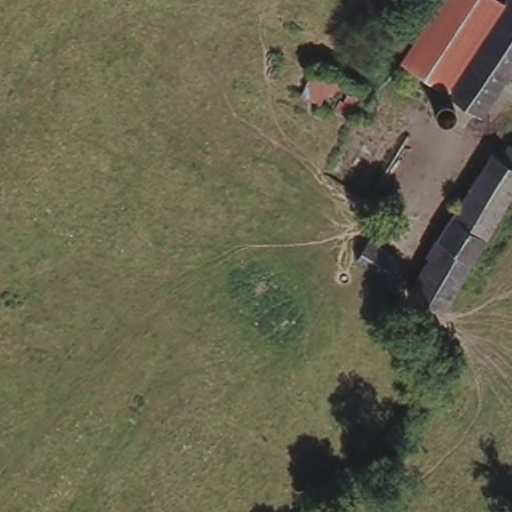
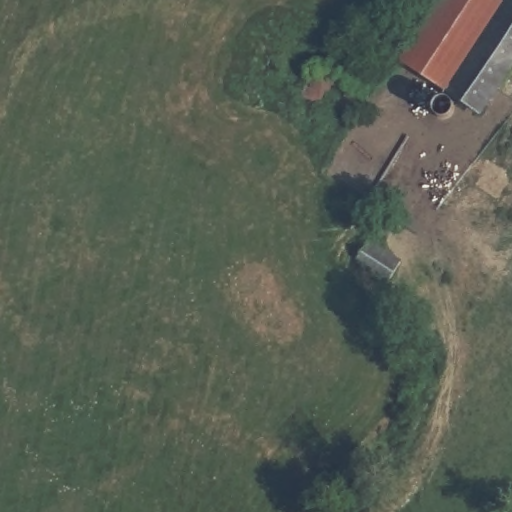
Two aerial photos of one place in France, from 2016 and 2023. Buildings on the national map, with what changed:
unchanged [(438,0),(497,0),(444,91),(399,62),(438,0)]
unchanged [(512,0),(512,63),(479,114),(444,91),(497,0),(512,0)]
unchanged [(457,114),(457,115),(457,116),(457,117),(456,117),(456,118),(456,119),(455,120),(454,121),(454,122),(453,122),(453,123),(453,124),(452,124),(452,125),(451,125),(451,126),(450,126),(449,126),(449,127),(448,127),(447,127),(446,128),(445,128),(444,128),(444,129),(443,129),(442,129),(440,129),(439,129),(438,129),(438,128),(437,128),(436,127),(435,127),(434,127),(433,127),(433,126),(432,126),(432,125),(431,125),(430,124),(429,124),(429,123),(429,122),(428,122),(428,121),(427,121),(427,120),(427,119),(426,118),(426,117),(426,116),(426,115),(426,114),(426,112),(426,111),(426,110),(426,109),(427,109),(427,108),(427,107),(427,106),(428,106),(428,105),(429,104),(429,103),(429,102),(430,102),(431,102),(431,101),(432,101),(432,100),(433,100),(434,100),(434,99),(435,99),(436,99),(436,98),(437,98),(437,97),(438,97),(439,97),(440,97),(441,97),(443,97),(444,97),(445,97),(446,97),(447,98),(448,99),(449,99),(449,100),(450,100),(451,100),(451,101),(452,101),(452,102),(453,102),(454,102),(454,103),(454,104),(455,105),(456,106),(456,107),(457,107),(457,108),(456,109),(457,109),(457,110),(457,111),(457,112),(457,113),(457,114)]
demolished [(489,152),(498,138),(509,142),(512,138),(512,164),(489,152)]
demolished [(512,195),(503,192),(439,315),(408,293),(482,150),(489,152),(512,164),(512,194),(512,195)]
unchanged [(367,242),(399,262),(389,279),(373,267),(357,256),(367,242)]

